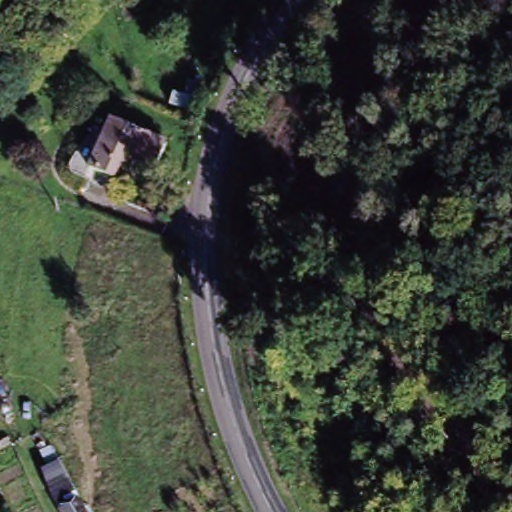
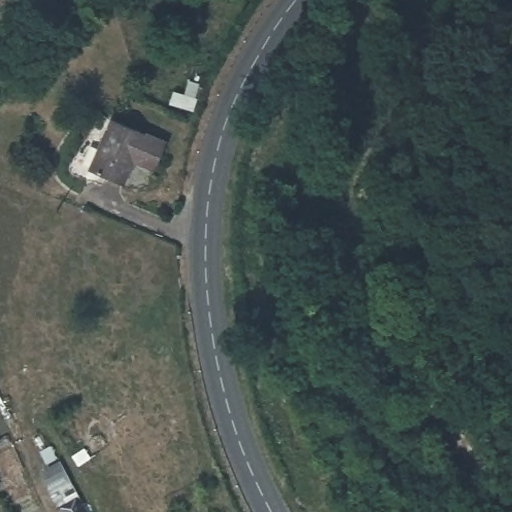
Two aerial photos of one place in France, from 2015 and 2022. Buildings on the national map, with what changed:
unchanged [(115,125),(145,141),(122,188),(90,171),(115,125)]
unchanged [(55,507),(45,456),(56,451),(86,512),(58,512),(55,507)]

